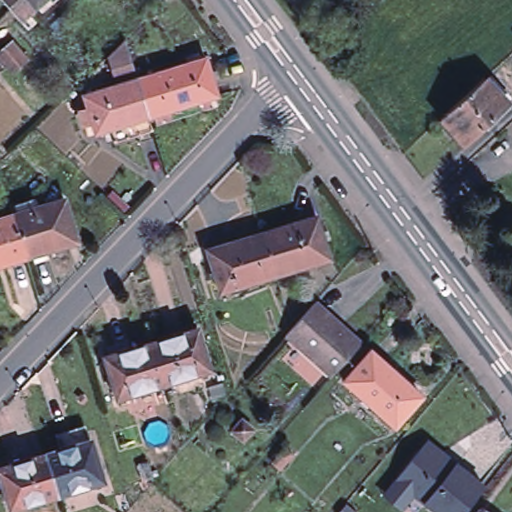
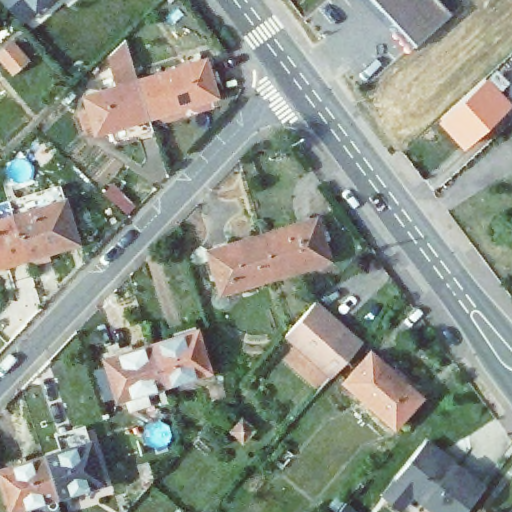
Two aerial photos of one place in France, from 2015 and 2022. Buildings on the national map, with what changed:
unchanged [(2,0),(44,0),(20,20),(2,0)]
new [(416,45),(375,0),(439,0),(450,12),(416,45)]
unchanged [(88,108),(85,95),(117,85),(108,55),(125,39),(137,79),(205,58),(217,95),(149,116),(153,129),(115,141),(111,129),(95,133),(92,121),(85,123),(81,110),(88,108)]
unchanged [(11,41),(28,59),(13,73),(0,58),(0,52),(11,41)]
unchanged [(510,105),(464,148),(440,121),(486,79),(510,105)]
unchanged [(19,214),(16,204),(31,199),(34,209),(63,199),(76,242),(26,258),(13,215),(19,214)]
unchanged [(0,266),(0,219),(13,215),(26,258),(0,266)]
unchanged [(315,218),(328,259),(277,274),(263,233),(315,218)]
unchanged [(220,292),(207,250),(263,233),(277,274),(220,292)]
unchanged [(315,307),(326,318),(340,330),(360,348),(331,382),(285,339),(293,330),(315,307)]
unchanged [(191,330),(203,369),(157,384),(145,344),(191,330)]
unchanged [(128,393),(131,401),(121,404),(118,396),(111,398),(100,359),(145,344),(157,384),(128,393)]
unchanged [(420,397),(394,426),(343,382),(370,352),(420,397)]
unchanged [(223,382),(227,395),(213,399),(209,386),(223,382)]
unchanged [(252,429),(242,441),(230,431),(241,419),(252,429)]
unchanged [(63,439),(93,430),(98,448),(111,487),(65,501),(52,462),(68,457),(63,439)]
unchanged [(382,496),(395,479),(426,441),(441,453),(455,464),(484,487),(464,512),(435,512),(424,503),(412,494),(400,509),(382,496)]
unchanged [(292,454),(281,468),(272,461),(283,447),(292,454)]
unchanged [(30,512),(17,512),(6,476),(52,462),(65,501),(30,512)]
unchanged [(147,462),(151,477),(141,479),(137,464),(147,462)]
unchanged [(479,508),(484,512),(476,512),(479,508)]

